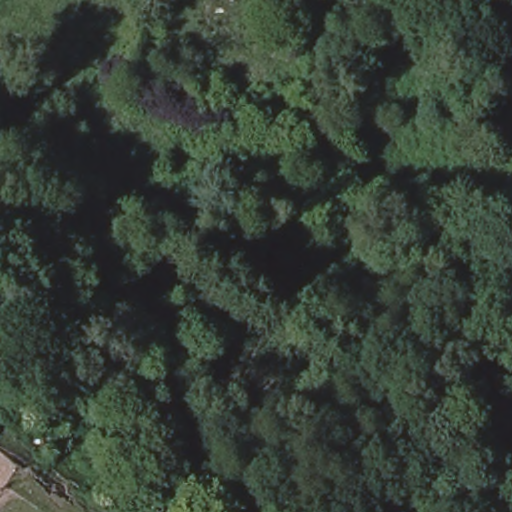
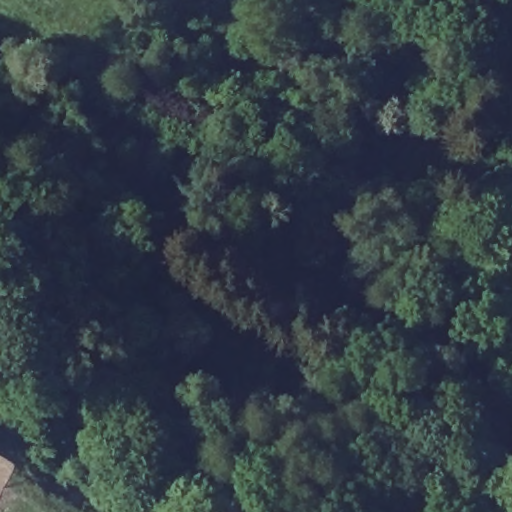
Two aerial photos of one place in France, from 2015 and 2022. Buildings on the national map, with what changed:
unchanged [(427,223),(366,199),(381,166),(435,193),(427,223)]

